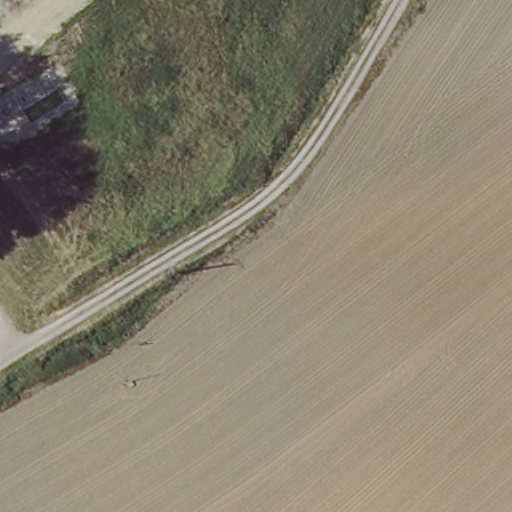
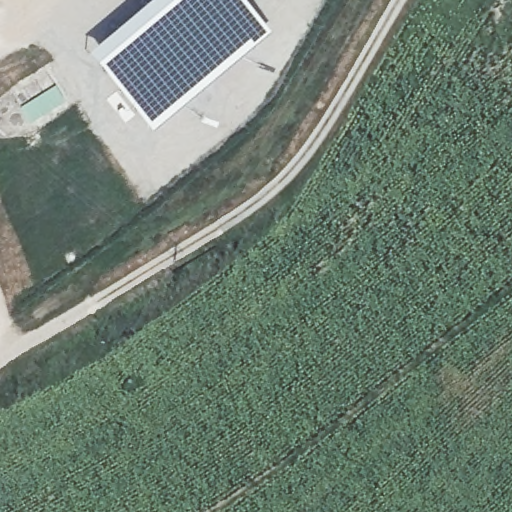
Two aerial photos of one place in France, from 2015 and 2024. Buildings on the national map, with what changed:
new [(243,0),(267,29),(148,128),(83,50),(138,0),(243,0)]

